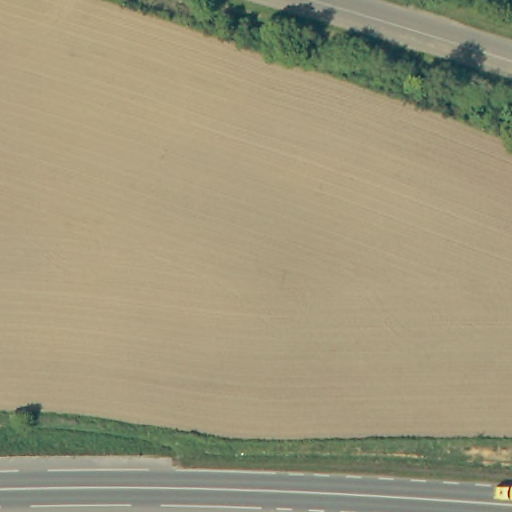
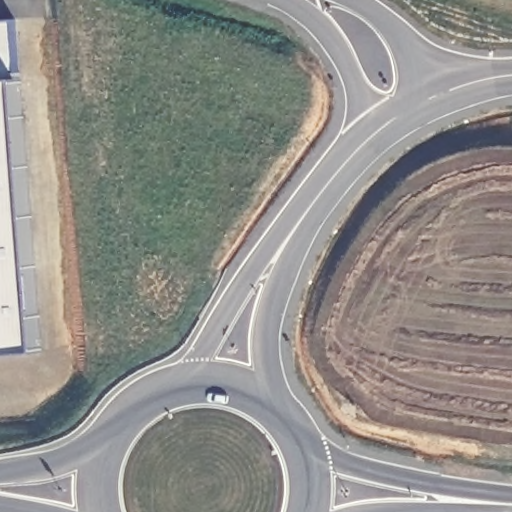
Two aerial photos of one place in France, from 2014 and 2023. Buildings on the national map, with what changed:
new [(14,20),(16,79),(37,352),(0,355),(0,21),(14,20)]

